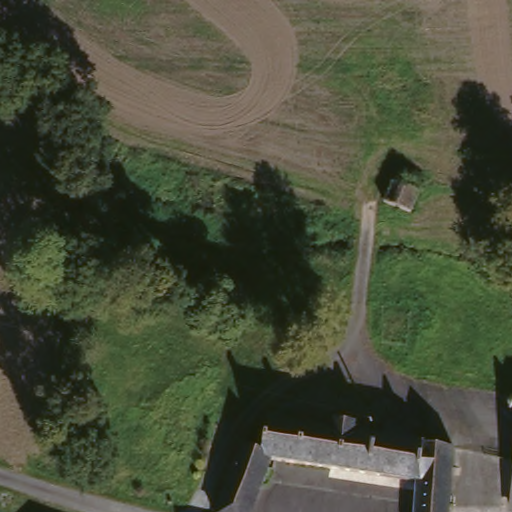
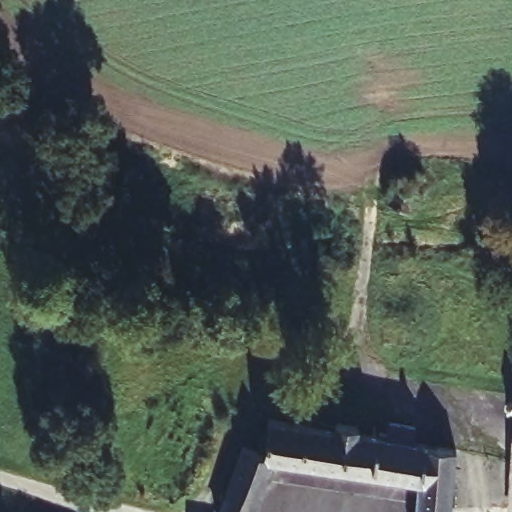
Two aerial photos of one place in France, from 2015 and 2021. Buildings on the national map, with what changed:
unchanged [(422,182),(408,220),(372,207),(389,177),(422,182)]
unchanged [(416,482),(269,454),(256,498),(269,502),(267,512),(223,512),(221,512),(241,445),(254,448),(257,438),(263,440),(270,418),(328,428),(330,417),(356,422),(354,428),(363,430),(362,435),(379,438),(381,427),(404,431),(402,442),(449,451),(446,512),(415,512),(416,482)]
unchanged [(512,488),(512,506),(509,505),(512,488)]

